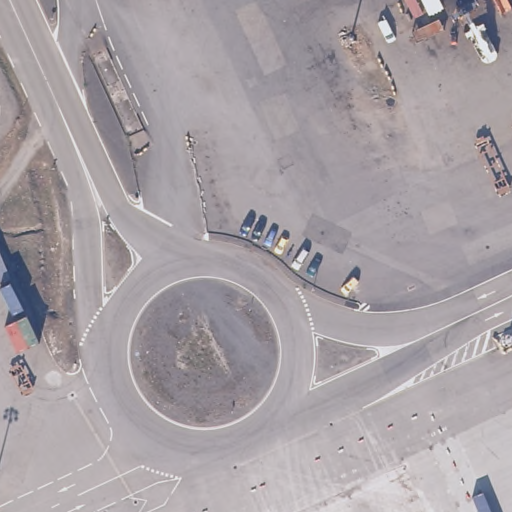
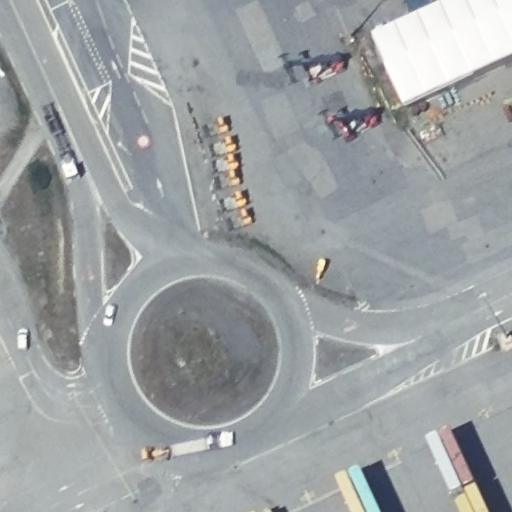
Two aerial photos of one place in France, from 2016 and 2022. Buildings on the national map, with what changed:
new [(512,0),(512,63),(408,111),(375,38),(460,0),(512,0)]

